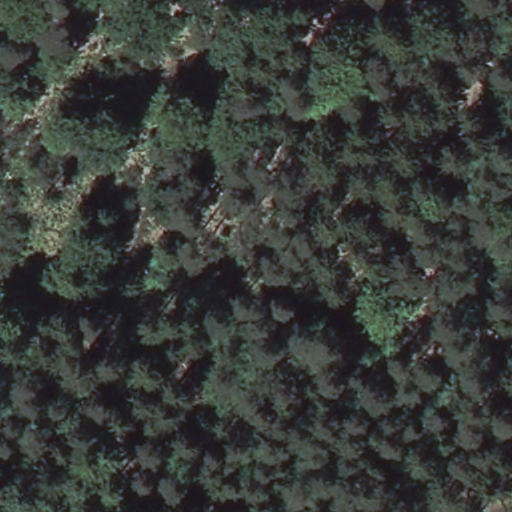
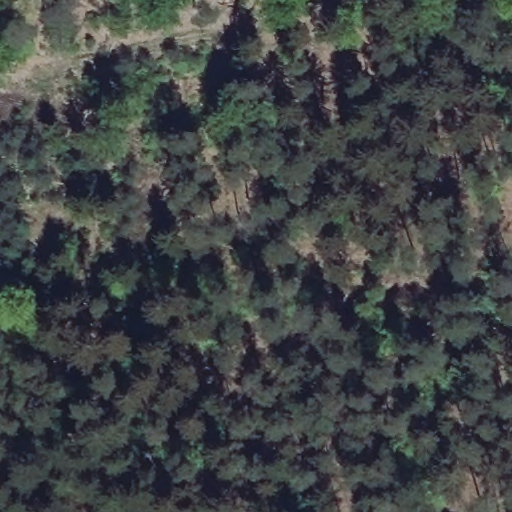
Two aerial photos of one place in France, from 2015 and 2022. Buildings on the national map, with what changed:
[]

